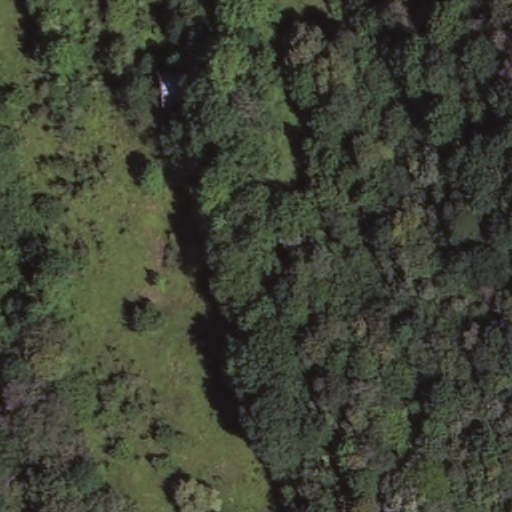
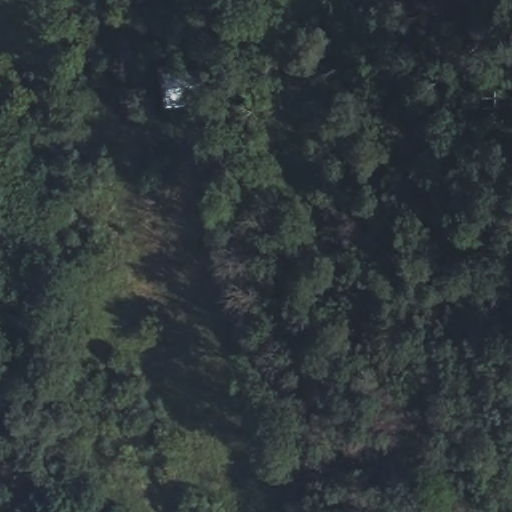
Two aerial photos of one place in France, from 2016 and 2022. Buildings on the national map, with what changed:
unchanged [(223,76),(174,83),(169,49),(217,40),(223,76)]

